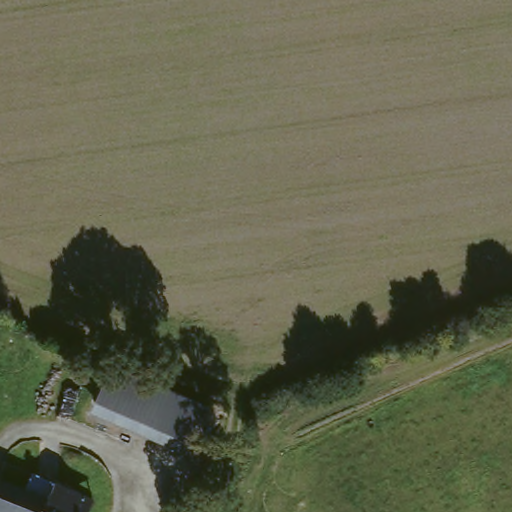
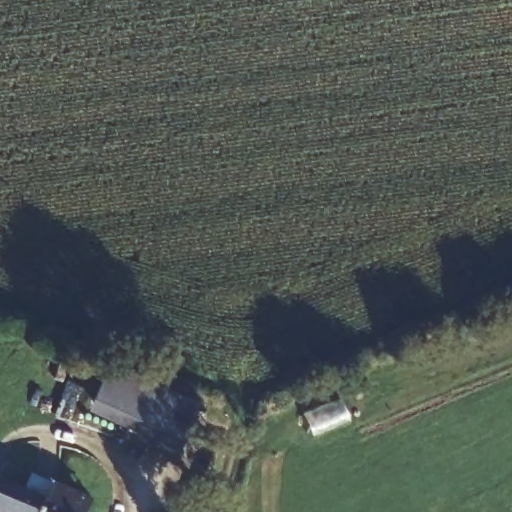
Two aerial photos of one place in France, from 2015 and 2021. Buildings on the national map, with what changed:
unchanged [(90,414),(101,375),(197,401),(186,440),(90,414)]
unchanged [(15,494),(21,477),(87,497),(82,512),(0,512),(0,489),(15,494)]

